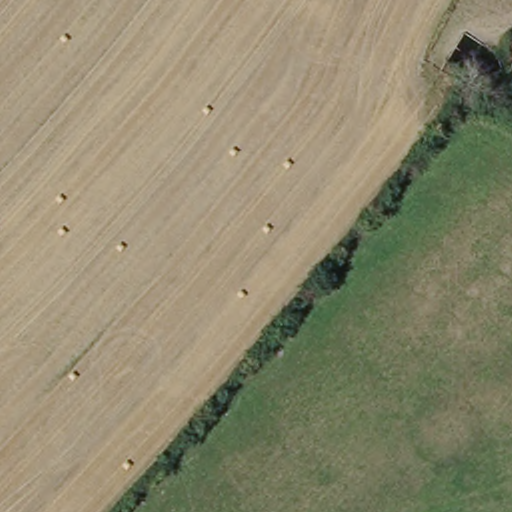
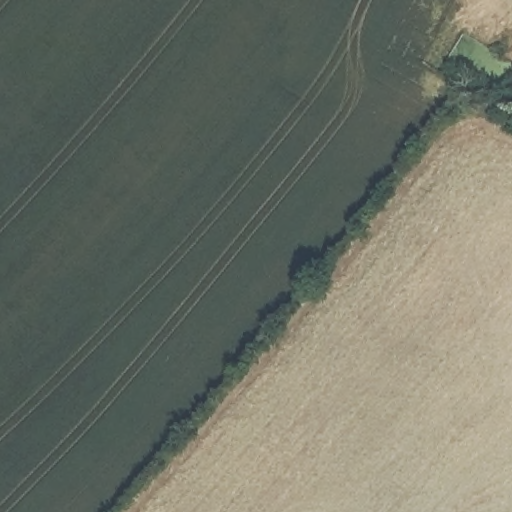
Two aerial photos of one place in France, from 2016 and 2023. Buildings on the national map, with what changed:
unchanged [(512,91),(500,84),(512,65),(512,91)]

